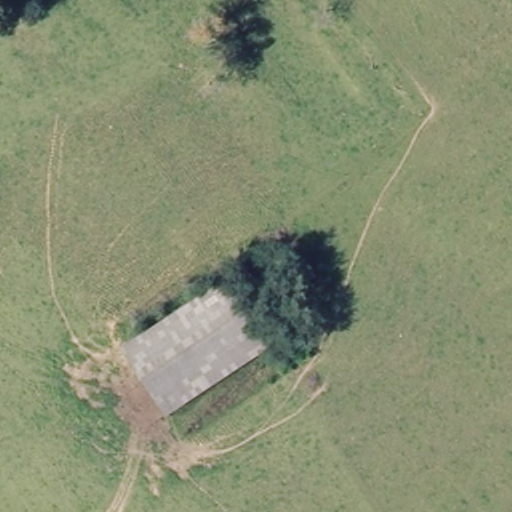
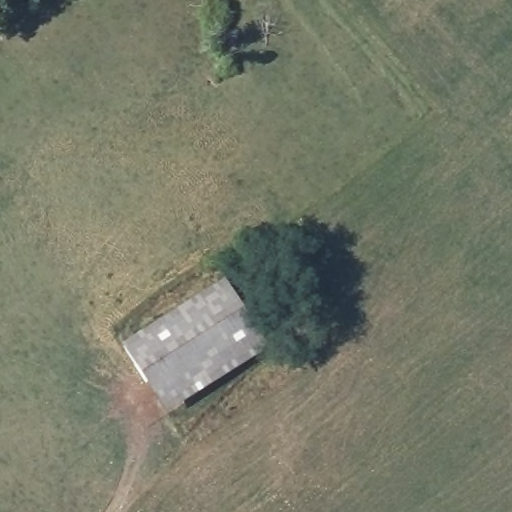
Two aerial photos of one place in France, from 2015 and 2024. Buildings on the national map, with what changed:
unchanged [(122,345),(192,302),(222,284),(256,338),(265,354),(239,370),(165,415),(156,400),(122,345)]

